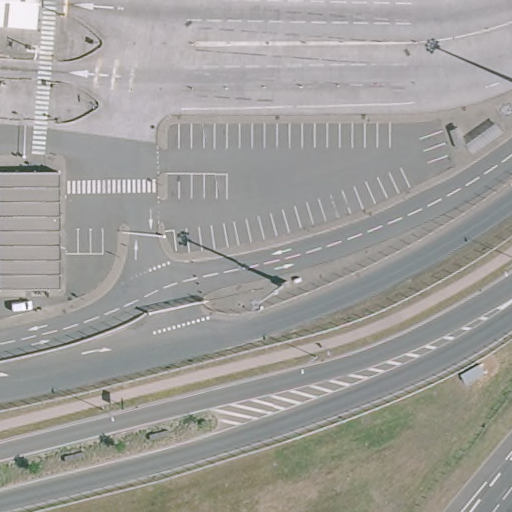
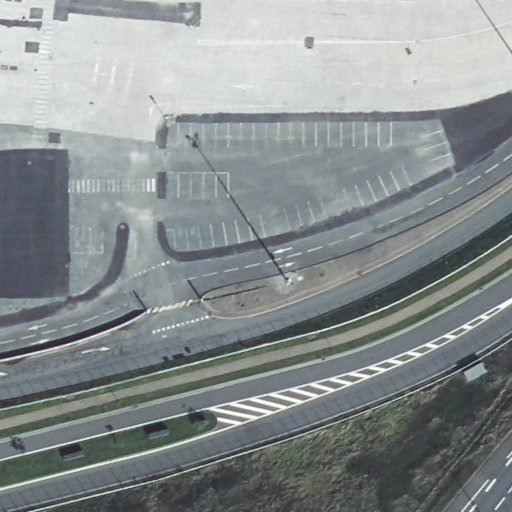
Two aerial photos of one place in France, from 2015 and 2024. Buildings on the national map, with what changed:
unchanged [(34,0),(32,28),(0,26),(0,0),(34,0)]
unchanged [(58,288),(0,289),(0,172),(58,171),(58,288)]

